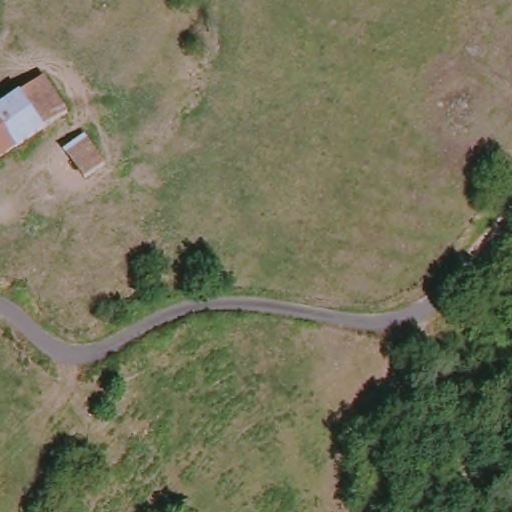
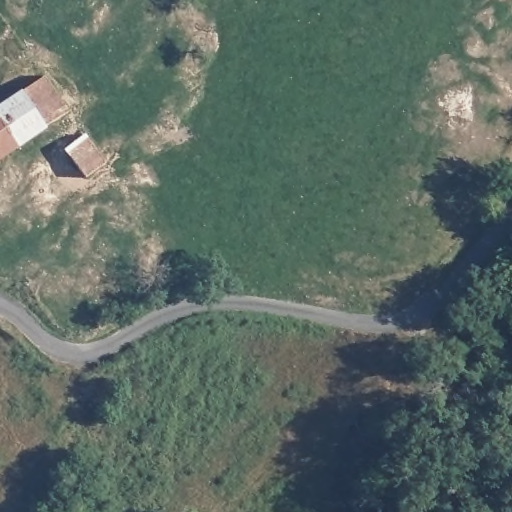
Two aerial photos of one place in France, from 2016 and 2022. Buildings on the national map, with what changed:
unchanged [(0,97),(4,92),(12,92),(17,96),(41,79),(66,116),(0,160),(0,97)]
unchanged [(78,194),(55,159),(76,142),(99,176),(78,194)]

